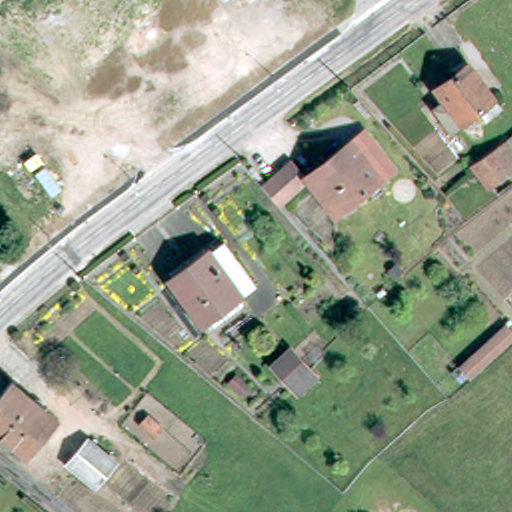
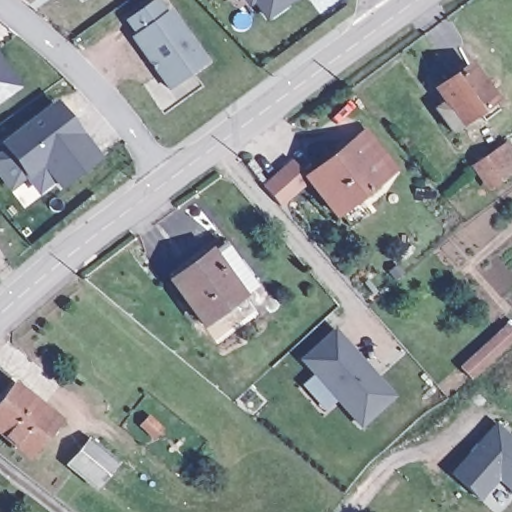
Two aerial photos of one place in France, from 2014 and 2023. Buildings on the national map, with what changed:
new [(170,7),(208,61),(170,87),(132,36),(137,32),(127,19),(153,0),(161,0),(167,10),(170,7)]
new [(254,2),(248,6),(244,0),(296,0),(267,21),(254,2)]
new [(0,102),(0,56),(22,86),(0,102)]
unchanged [(483,109),(457,129),(440,107),(448,100),(440,89),(472,64),(497,97),(505,107),(491,117),(483,109)]
new [(57,99),(102,155),(60,190),(42,167),(27,177),(1,142),(57,99)]
unchanged [(512,154),(512,160),(510,162),(487,181),(470,159),(498,137),(512,154)]
unchanged [(351,145),(380,179),(337,216),(308,181),(351,145)]
unchanged [(292,162),(308,181),(277,207),(261,187),(292,162)]
unchanged [(210,330),(204,322),(202,325),(169,286),(217,244),(250,281),(234,296),(240,304),(210,330)]
new [(337,330),(397,400),(363,429),(300,362),(337,330)]
demolished [(300,392),(265,361),(287,341),(325,381),(300,392)]
unchanged [(27,452),(0,428),(0,399),(15,383),(56,420),(27,452)]
new [(480,501),(450,474),(496,422),(512,436),(512,492),(499,480),(480,501)]
unchanged [(102,467),(80,489),(59,470),(79,447),(102,467)]

